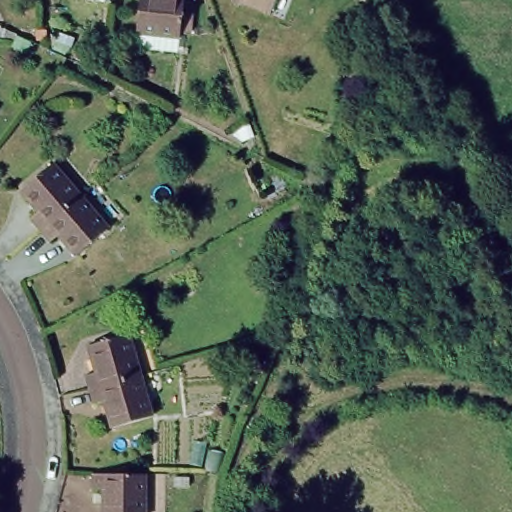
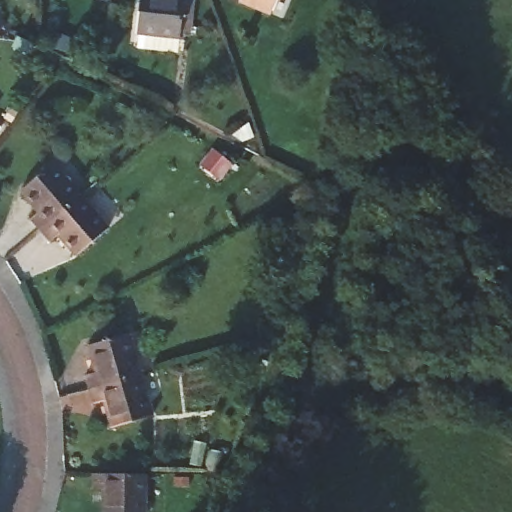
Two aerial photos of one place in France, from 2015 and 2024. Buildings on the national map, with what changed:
unchanged [(139,23),(136,22),(139,0),(193,0),(190,22),(180,21),(180,27),(178,41),(137,36),(139,23)]
unchanged [(251,0),(273,0),(270,8),(251,0)]
unchanged [(41,224),(31,212),(40,205),(22,184),(55,157),(82,189),(41,224)]
unchanged [(110,222),(77,249),(60,228),(51,236),(41,224),(82,189),(110,222)]
unchanged [(89,368),(100,365),(92,338),(133,327),(145,368),(93,382),(89,368)]
unchanged [(145,368),(156,410),(115,421),(108,394),(97,397),(93,382),(145,368)]
unchanged [(147,472),(146,512),(104,512),(105,487),(93,487),(93,472),(147,472)]

